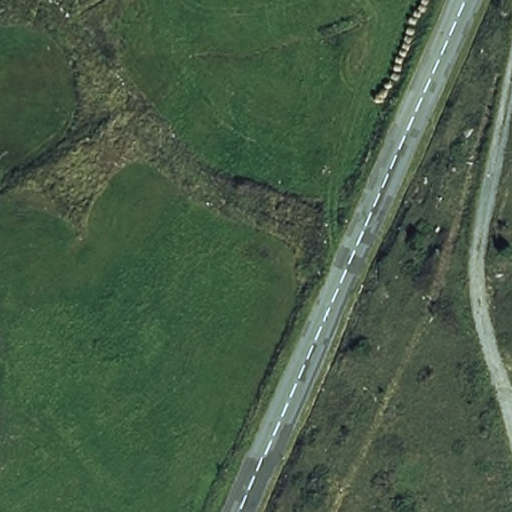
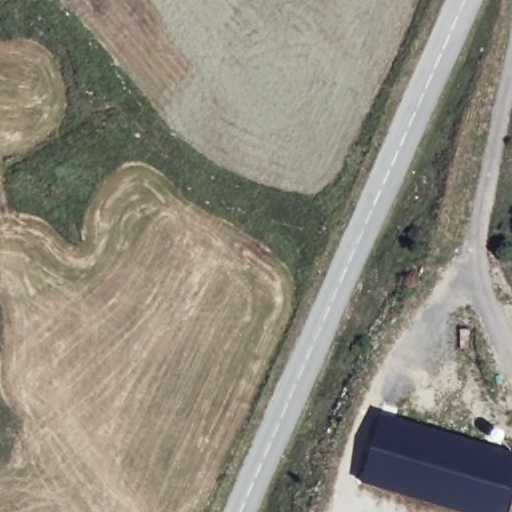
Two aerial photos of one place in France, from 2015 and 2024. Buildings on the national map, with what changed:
new [(385,418),(386,413),(399,417),(411,421),(502,447),(512,450),(512,496),(507,512),(461,512),(432,504),(357,480),(379,416),(385,418)]

